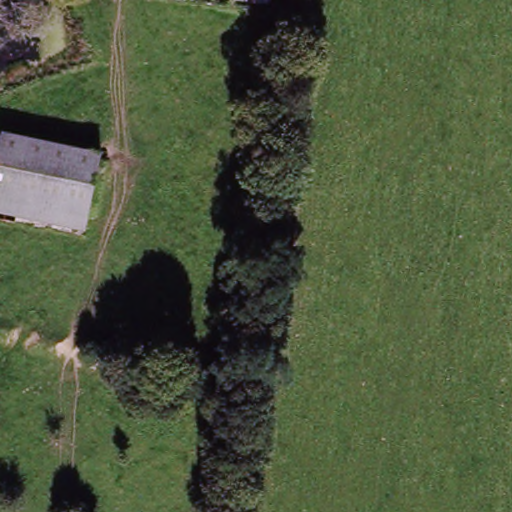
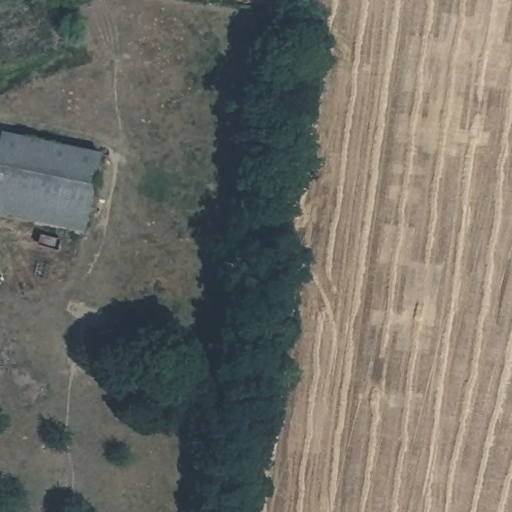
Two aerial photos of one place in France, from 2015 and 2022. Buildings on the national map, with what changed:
unchanged [(0,186),(0,158),(4,141),(102,161),(92,207),(0,186)]
unchanged [(0,220),(0,186),(92,207),(85,240),(0,220)]

